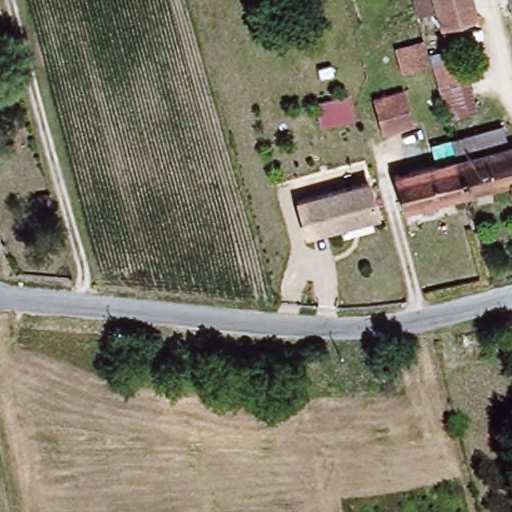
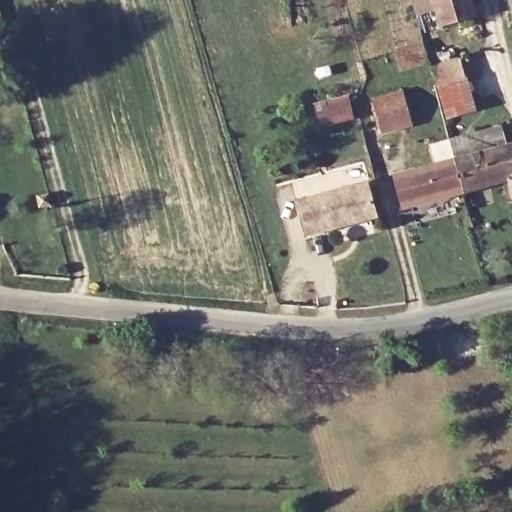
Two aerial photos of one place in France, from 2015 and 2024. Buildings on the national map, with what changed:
unchanged [(470,0),(476,18),(437,28),(430,0),(470,0)]
unchanged [(472,113),(447,119),(423,39),(437,36),(442,52),(455,50),(472,113)]
unchanged [(416,127),(382,136),(372,101),(406,93),(416,127)]
unchanged [(503,127),(508,145),(512,144),(512,190),(510,183),(467,194),(452,141),(503,127)]
unchanged [(397,176),(439,164),(435,146),(452,141),(467,194),(407,212),(397,176)]
unchanged [(317,197),(365,184),(375,219),(326,232),(303,238),(294,203),(317,197)]

